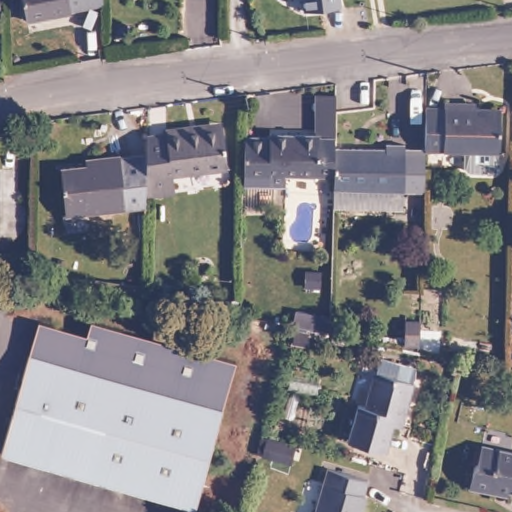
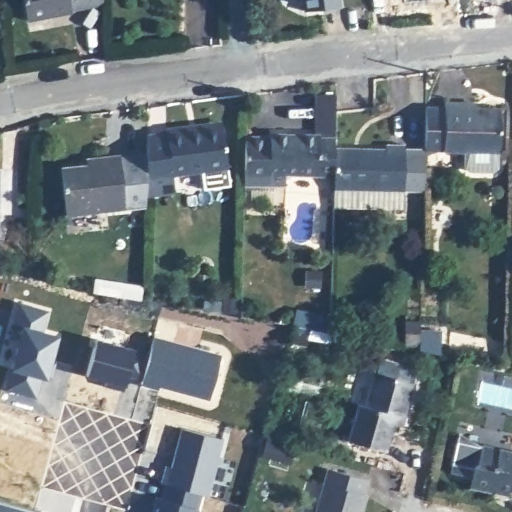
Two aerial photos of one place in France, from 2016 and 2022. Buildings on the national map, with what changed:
unchanged [(19,0),(100,0),(100,3),(22,18),(19,0)]
unchanged [(341,4),(304,8),(303,0),(341,0),(341,4)]
unchanged [(448,104),(448,99),(465,99),(466,104),(501,103),(502,142),(500,142),(501,158),(497,163),(472,163),(468,159),(467,143),(431,144),(431,142),(430,104),(448,104)]
unchanged [(147,131),(164,129),(164,122),(178,120),(178,128),(214,125),(220,165),(209,166),(196,168),(175,170),(176,180),(178,189),(147,191),(147,182),(147,131)]
unchanged [(246,139),(274,139),(274,132),(315,131),(315,137),(330,137),(330,144),(331,173),(279,174),(278,184),(247,183),(246,139)]
unchanged [(330,144),(376,142),(377,139),(395,138),(395,142),(416,142),(416,144),(418,185),(397,185),(331,187),(331,173),(330,144)]
unchanged [(70,222),(63,177),(88,170),(87,165),(114,159),(125,208),(70,222)]
unchanged [(331,187),(397,185),(397,206),(331,208),(331,187)]
demolished [(198,503),(0,459),(27,324),(76,335),(79,321),(229,353),(198,503)]
unchanged [(393,356),(393,332),(406,330),(407,359),(393,356)]
unchanged [(391,419),(386,444),(348,433),(355,401),(365,398),(372,369),(409,380),(403,411),(401,423),(391,419)]
new [(164,500),(169,484),(164,483),(168,466),(174,467),(184,428),(226,439),(210,494),(204,493),(199,512),(154,512),(158,498),(164,500)]
unchanged [(494,489),(472,484),(476,466),(481,463),(483,446),(512,452),(512,489),(495,485),(494,489)]
unchanged [(363,488),(359,512),(313,512),(324,467),(362,478),(360,487),(363,488)]

